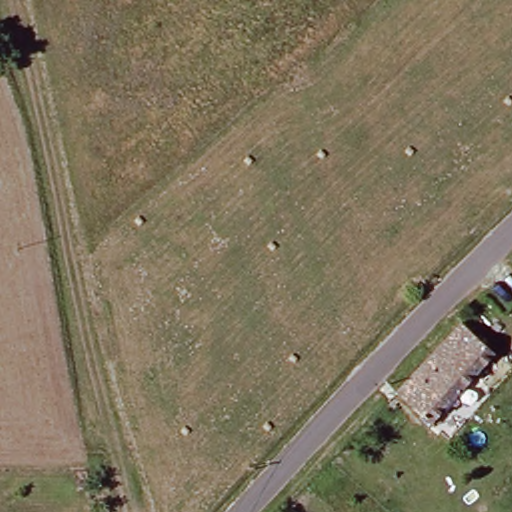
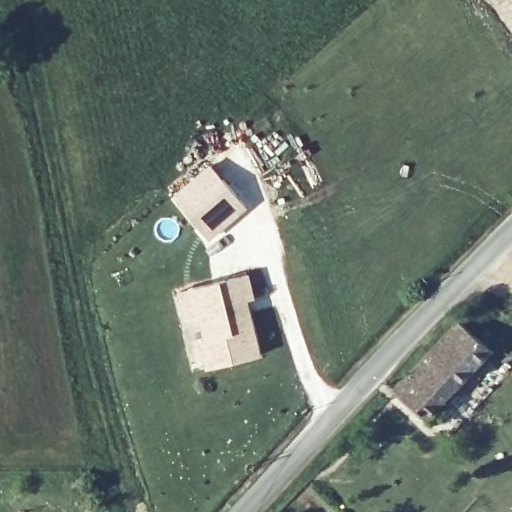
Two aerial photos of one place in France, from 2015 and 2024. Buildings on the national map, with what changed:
new [(204,243),(181,217),(169,203),(206,170),(218,184),(241,209),(204,243)]
new [(251,301),(239,305),(242,317),(247,315),(259,358),(207,372),(200,344),(204,343),(198,319),(185,323),(177,297),(191,293),(245,278),(251,301)]
unchanged [(457,332),(471,317),(506,349),(492,364),(427,435),(391,403),(457,332)]

